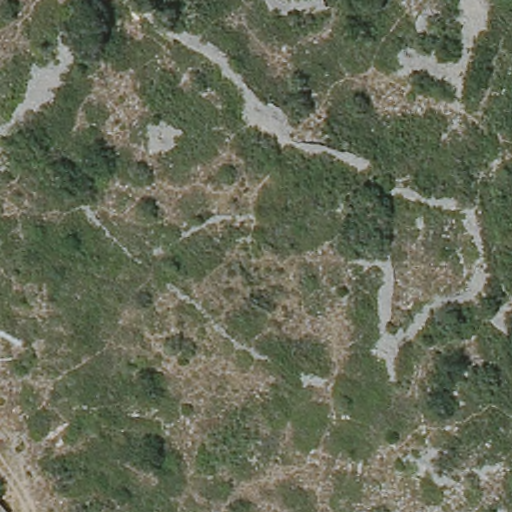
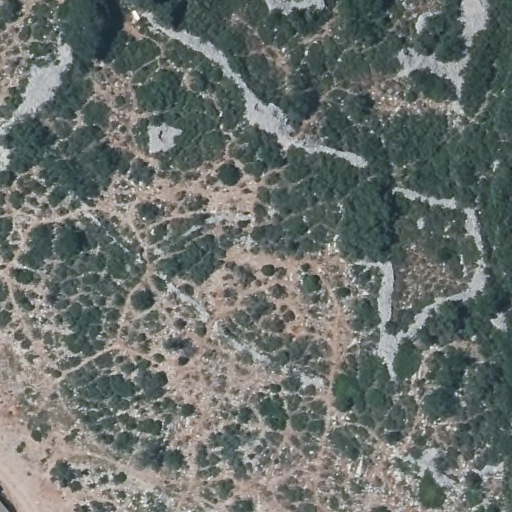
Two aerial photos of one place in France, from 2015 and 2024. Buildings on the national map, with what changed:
unchanged [(10,512),(0,512),(0,498),(10,512)]

